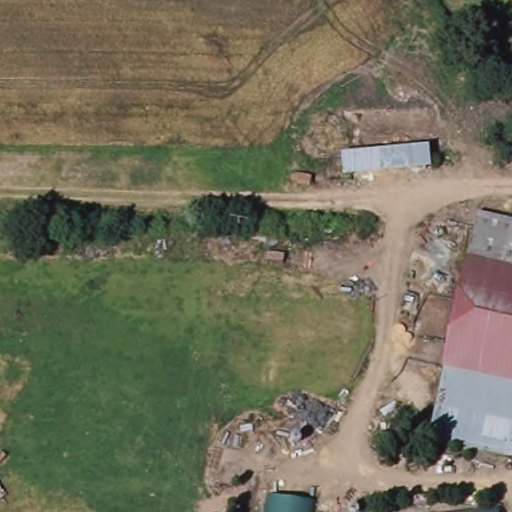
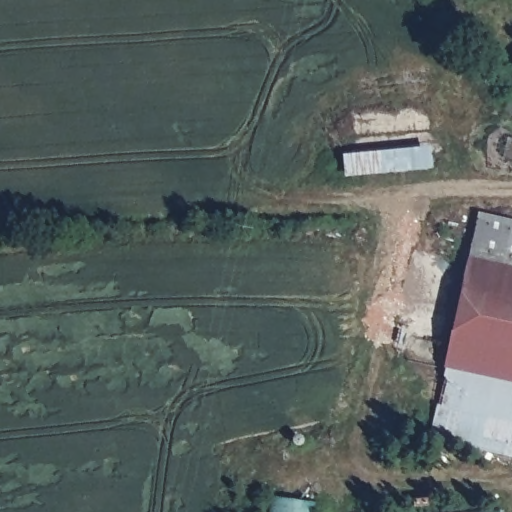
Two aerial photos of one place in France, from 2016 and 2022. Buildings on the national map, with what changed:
unchanged [(483,223),(485,217),(501,222),(512,225),(512,388),(442,369),(483,223)]
unchanged [(512,462),(425,438),(442,369),(512,388),(512,462)]
unchanged [(315,502),(313,512),(269,512),(271,495),(315,502)]

